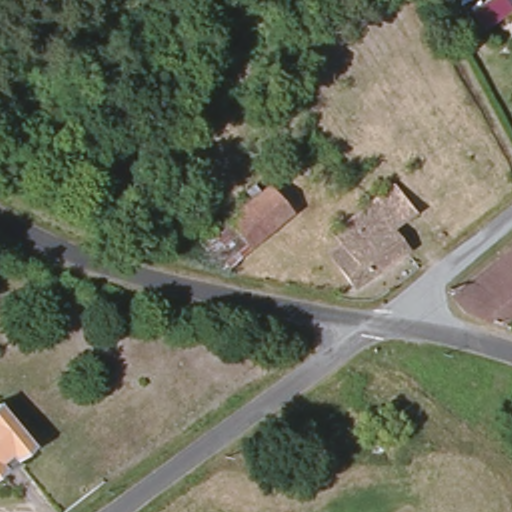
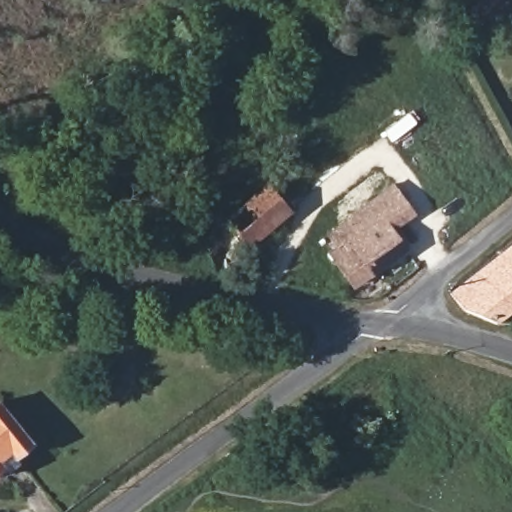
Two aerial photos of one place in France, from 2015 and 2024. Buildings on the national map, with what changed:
unchanged [(269,186),(289,213),(249,243),(228,217),(269,186)]
unchanged [(413,213),(390,230),(406,250),(358,285),(333,251),(346,242),(338,229),(394,187),(413,213)]
unchanged [(249,243),(218,266),(197,241),(228,217),(249,243)]
unchanged [(512,252),(512,311),(505,316),(486,291),(489,287),(480,275),(500,261),(512,252)]
unchanged [(489,287),(486,291),(505,316),(494,324),(459,311),(450,297),(480,275),(489,287)]
unchanged [(0,472),(0,413),(29,450),(0,472)]

